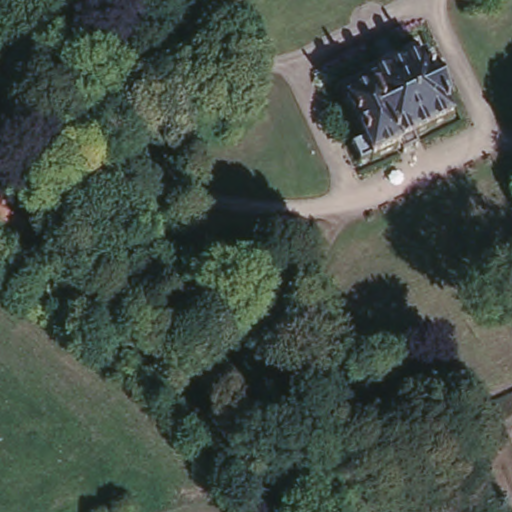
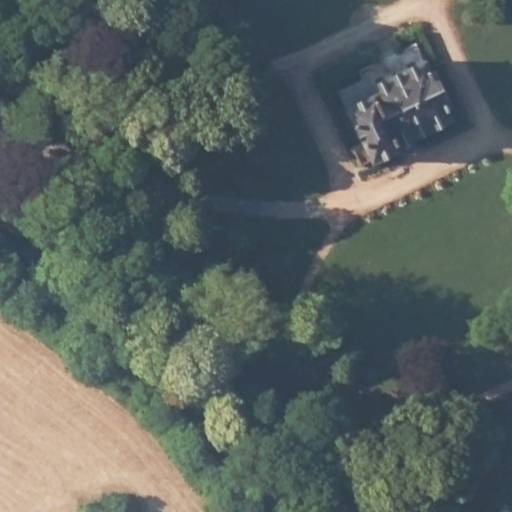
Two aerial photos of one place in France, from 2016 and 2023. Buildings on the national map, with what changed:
unchanged [(405,147),(402,139),(369,156),(366,150),(356,155),(347,137),(352,134),(351,132),(356,128),(339,94),(331,79),(363,65),(366,70),(420,43),(451,105),(412,126),(421,139),(405,147)]
unchanged [(29,211),(19,229),(0,219),(0,193),(29,211)]
unchanged [(39,227),(50,212),(74,232),(61,246),(39,227)]

